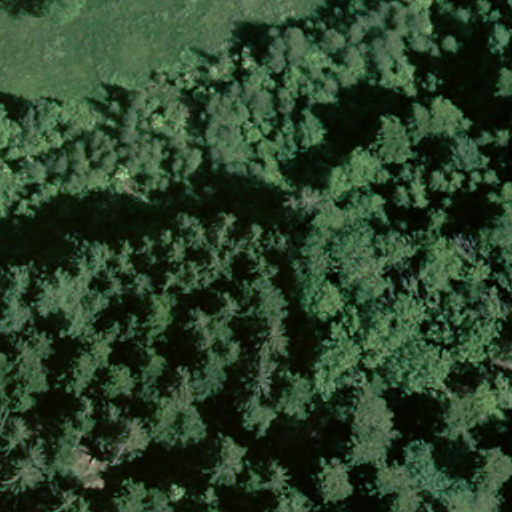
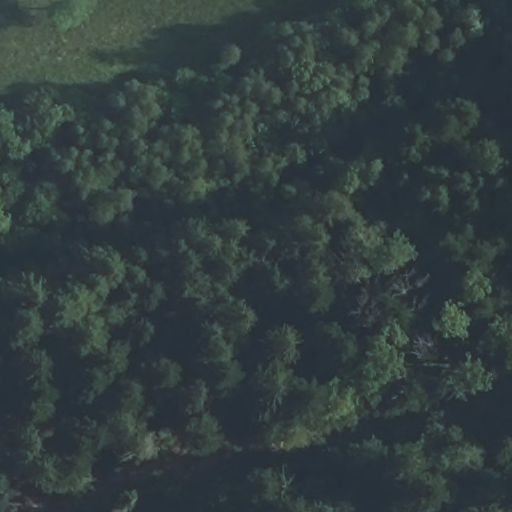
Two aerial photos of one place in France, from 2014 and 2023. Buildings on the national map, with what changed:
[]

